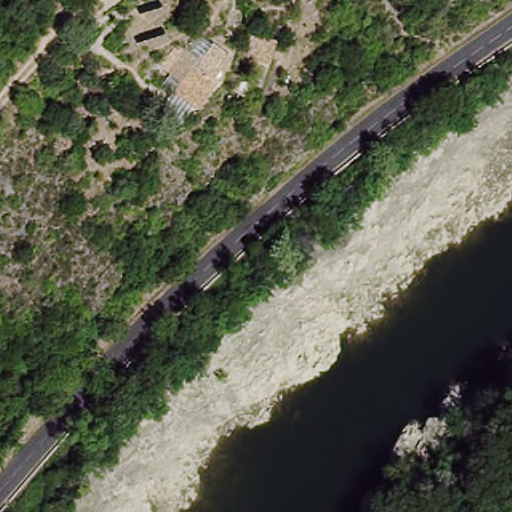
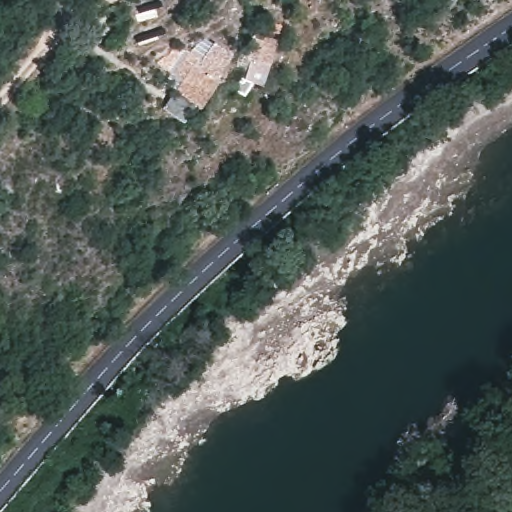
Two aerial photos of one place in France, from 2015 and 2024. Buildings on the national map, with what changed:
unchanged [(283,35),(279,64),(251,62),(253,30),(283,35)]
unchanged [(227,73),(205,111),(173,90),(196,56),(227,73)]

